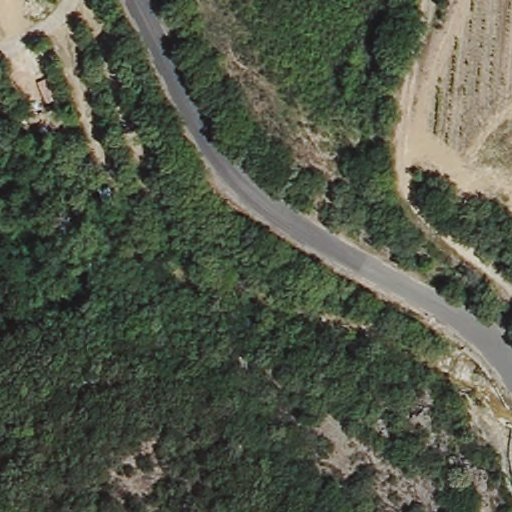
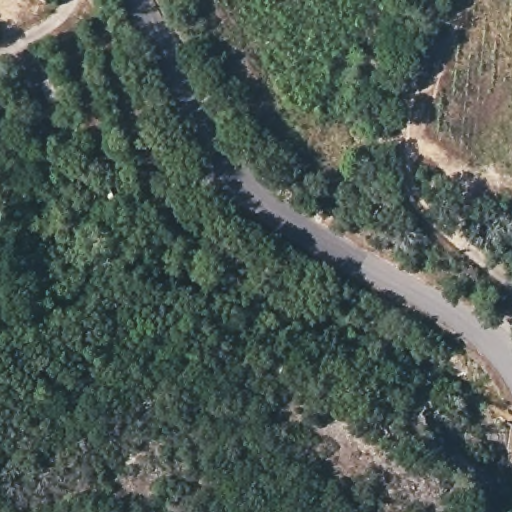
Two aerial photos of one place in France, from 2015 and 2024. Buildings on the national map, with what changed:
[]

